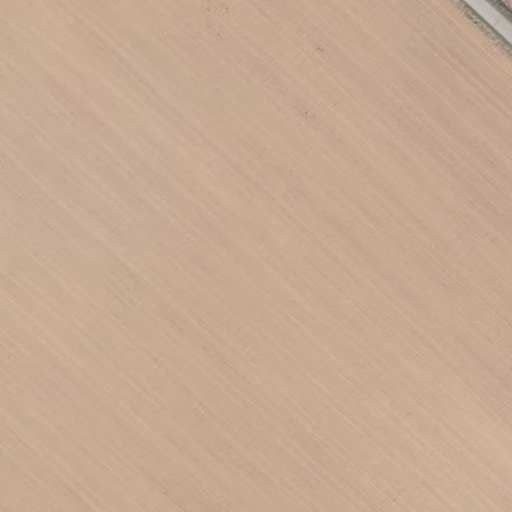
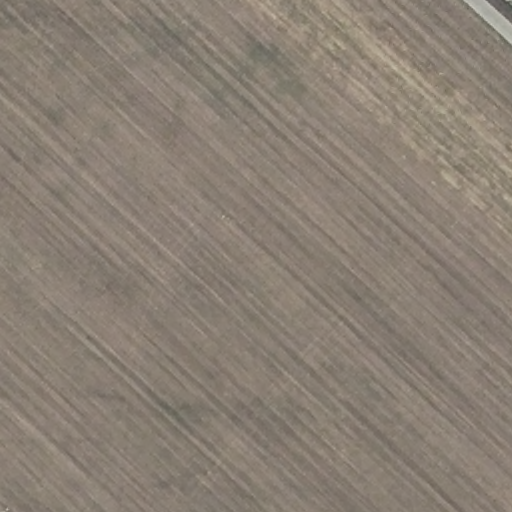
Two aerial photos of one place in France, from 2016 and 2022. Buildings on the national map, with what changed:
[]

